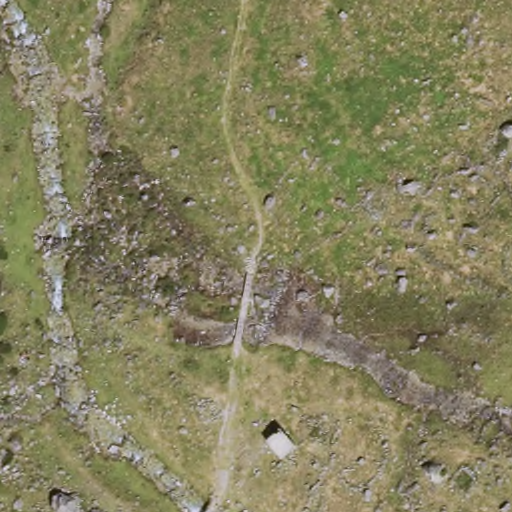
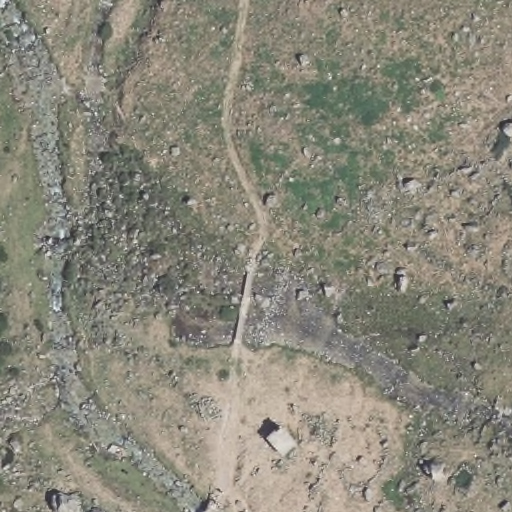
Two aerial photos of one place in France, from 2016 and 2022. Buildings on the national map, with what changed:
unchanged [(302,445),(288,458),(270,443),(278,435),(284,427),(302,445)]

